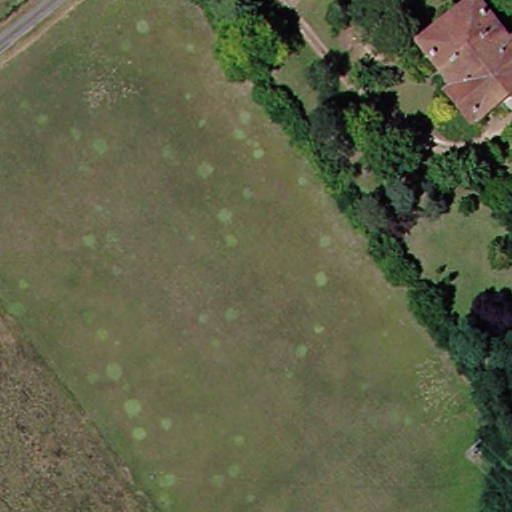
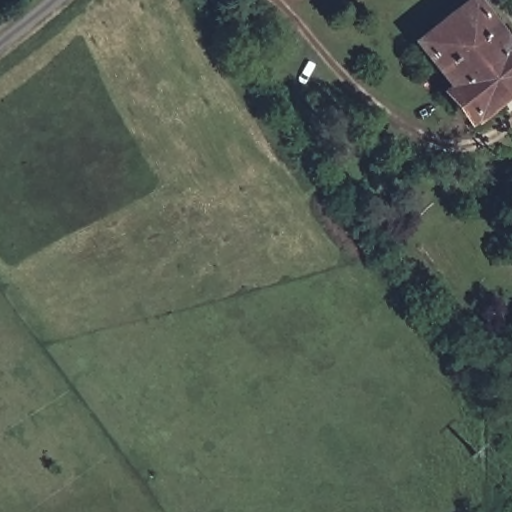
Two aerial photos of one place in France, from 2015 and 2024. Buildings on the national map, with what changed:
unchanged [(512,42),(512,100),(506,104),(504,101),(479,121),(459,95),(465,90),(430,46),(483,5),(512,42)]

